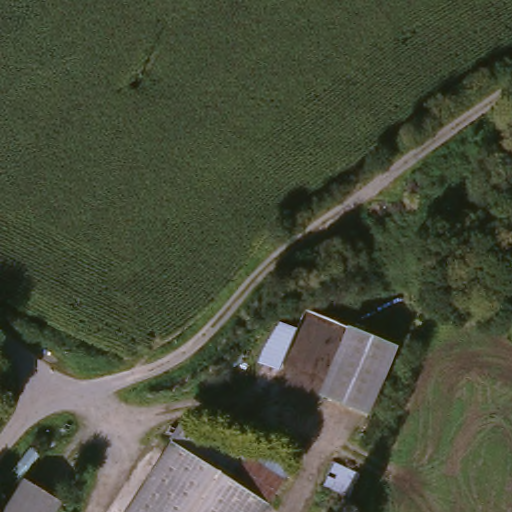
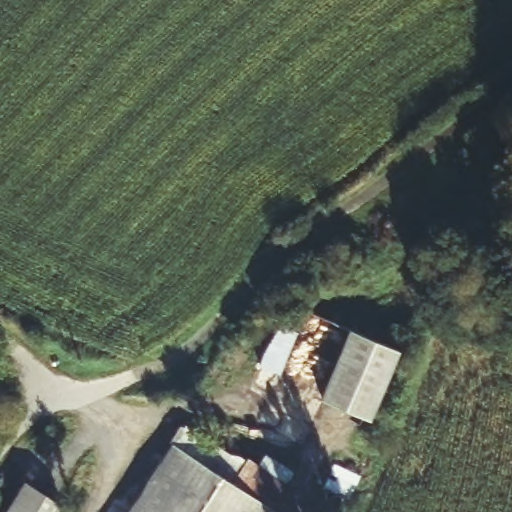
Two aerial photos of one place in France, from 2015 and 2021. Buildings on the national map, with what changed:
unchanged [(404,345),(371,414),(319,395),(329,367),(291,352),(310,308),(404,345)]
unchanged [(166,449),(184,432),(221,457),(244,458),(283,485),(265,509),(263,512),(124,512),(166,449)]
unchanged [(63,500),(57,512),(9,512),(28,481),(63,500)]

